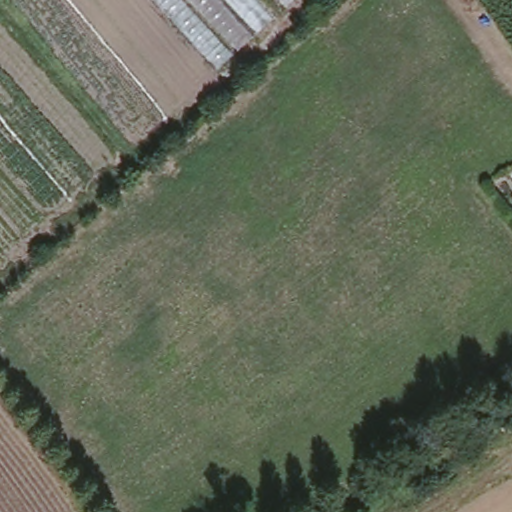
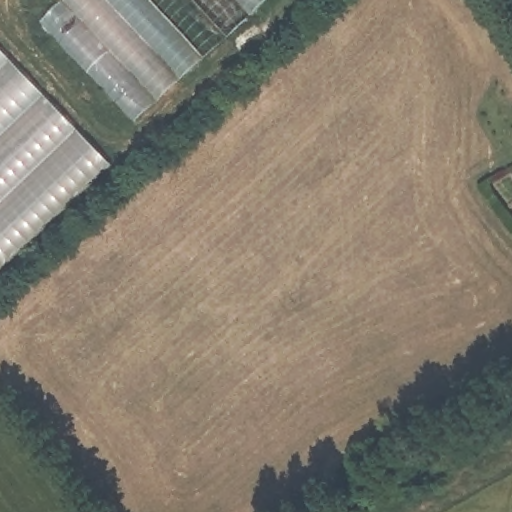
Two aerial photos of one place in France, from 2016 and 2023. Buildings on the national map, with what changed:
new [(133,122),(39,27),(64,0),(264,0),(133,122)]
new [(0,279),(0,49),(114,168),(0,279)]

